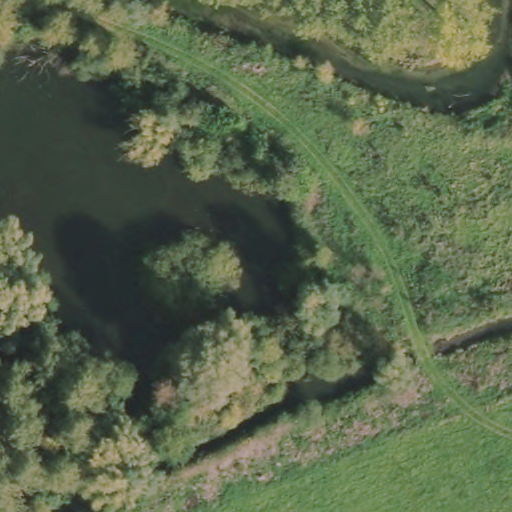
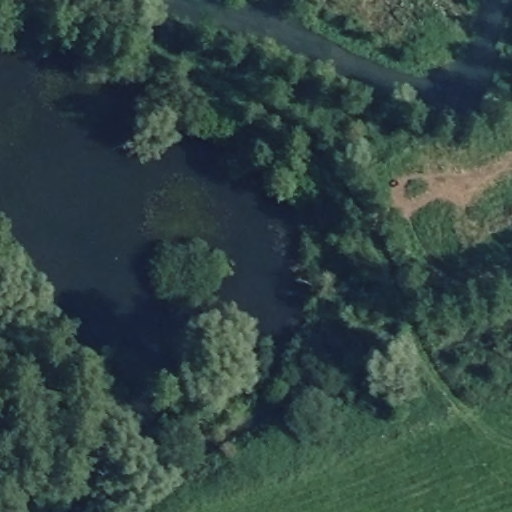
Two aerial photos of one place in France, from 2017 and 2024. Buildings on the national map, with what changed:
unchanged [(0,345),(0,324),(5,342),(0,345)]

